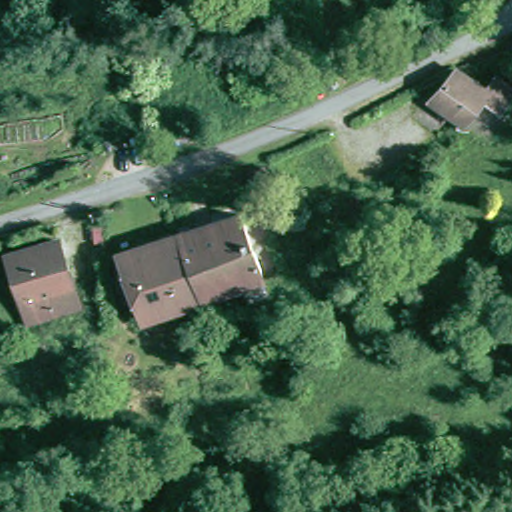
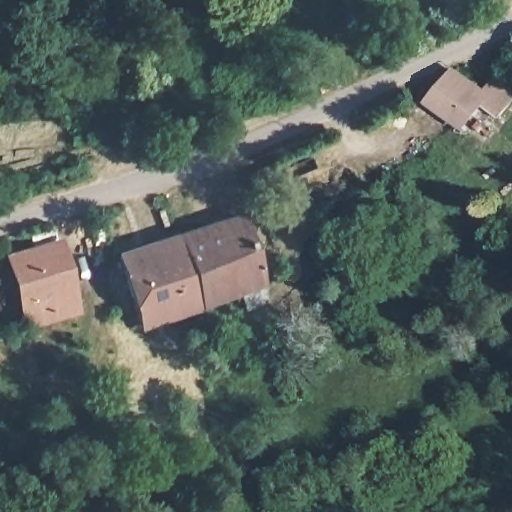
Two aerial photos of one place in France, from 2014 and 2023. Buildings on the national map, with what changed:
unchanged [(452,65),(479,89),(491,73),(512,90),(512,93),(493,114),(480,99),(459,124),(425,94),(452,65)]
unchanged [(230,210),(255,278),(188,300),(165,233),(230,210)]
unchanged [(130,321),(106,254),(165,233),(188,300),(130,321)]
unchanged [(20,300),(16,285),(7,288),(2,269),(11,266),(7,251),(52,239),(73,312),(44,319),(35,321),(19,325),(17,319),(12,303),(20,300)]

